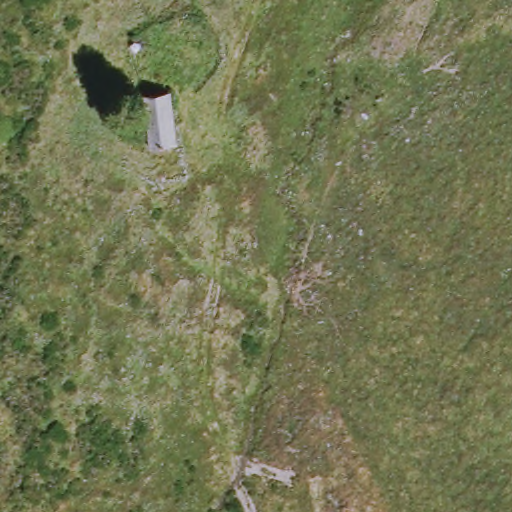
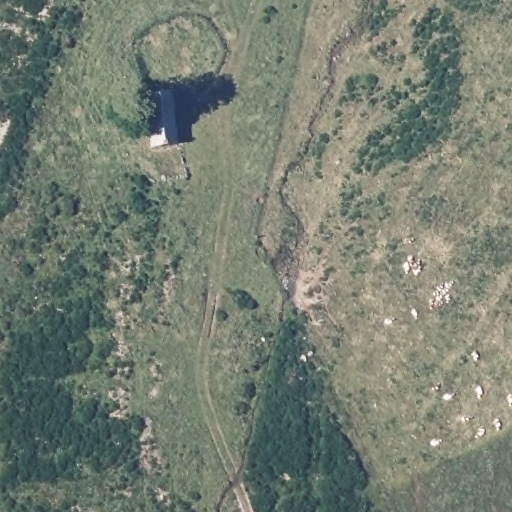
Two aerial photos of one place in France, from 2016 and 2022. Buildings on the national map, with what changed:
unchanged [(174,89),(180,143),(151,147),(145,93),(174,89)]

